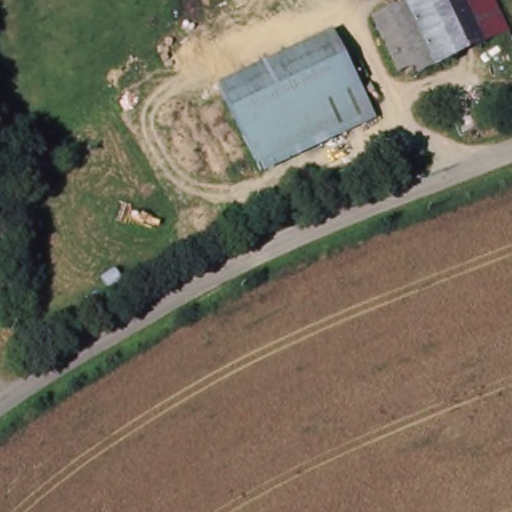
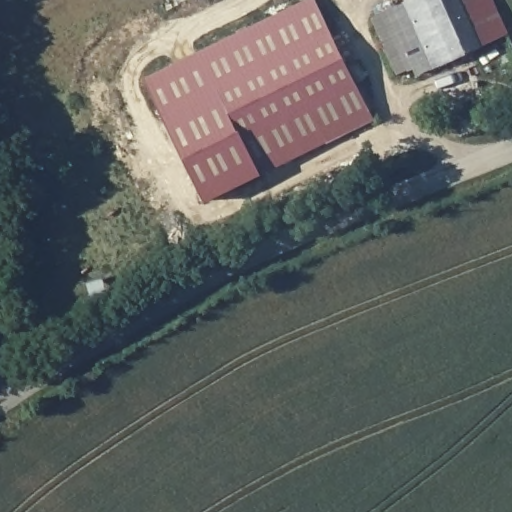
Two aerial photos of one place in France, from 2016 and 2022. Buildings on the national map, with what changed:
new [(216,85),(260,171),(206,201),(144,76),(305,0),(315,0),(328,33),(216,85)]
unchanged [(385,9),(404,0),(489,0),(505,34),(416,75),(385,9)]
unchanged [(328,33),(371,119),(260,171),(216,85),(328,33)]

